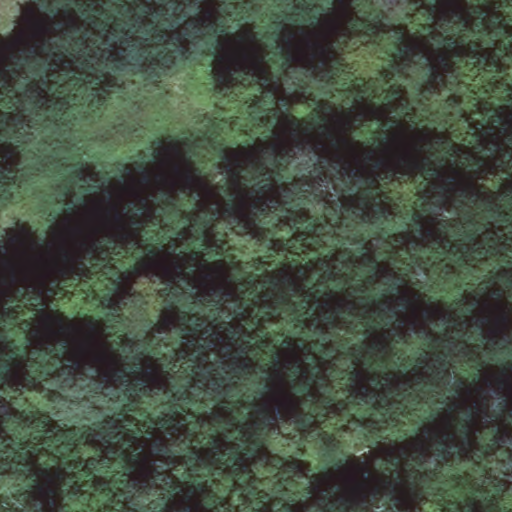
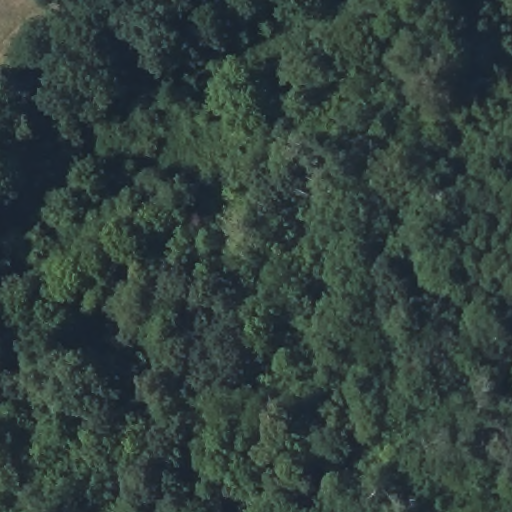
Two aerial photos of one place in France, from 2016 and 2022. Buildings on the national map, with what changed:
[]

